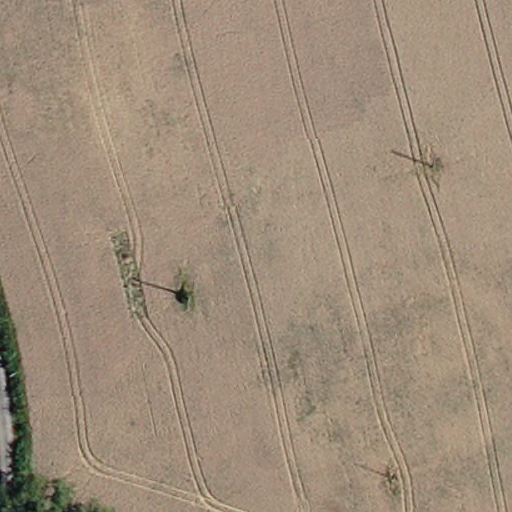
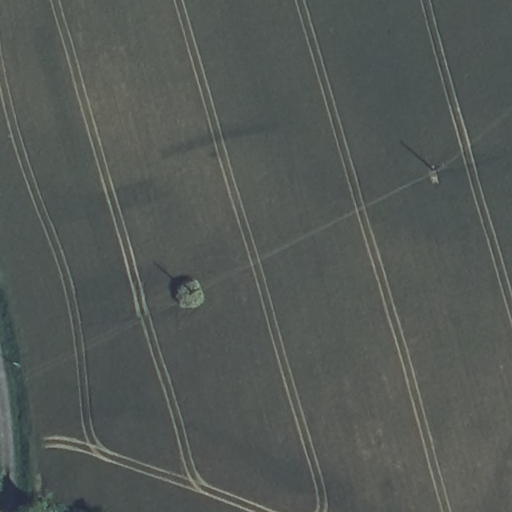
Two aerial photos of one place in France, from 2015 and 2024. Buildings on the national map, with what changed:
[]

